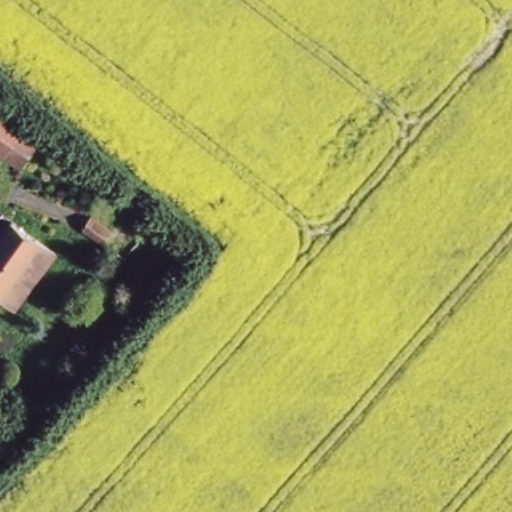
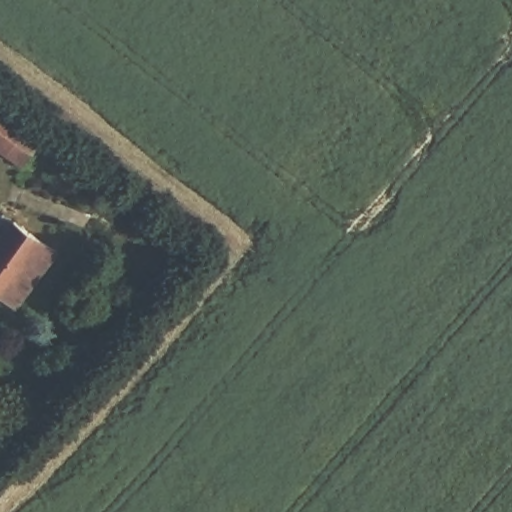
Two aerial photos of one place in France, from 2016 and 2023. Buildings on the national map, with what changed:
unchanged [(44,130),(22,165),(0,151),(0,100),(44,130)]
unchanged [(102,196),(116,215),(102,229),(85,213),(102,196)]
unchanged [(54,249),(16,307),(0,297),(0,231),(9,217),(54,249)]

